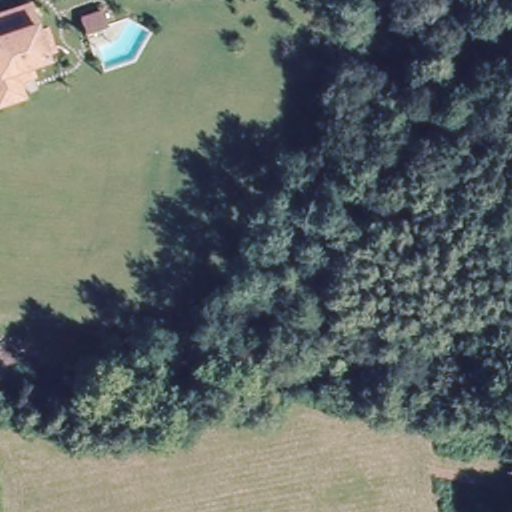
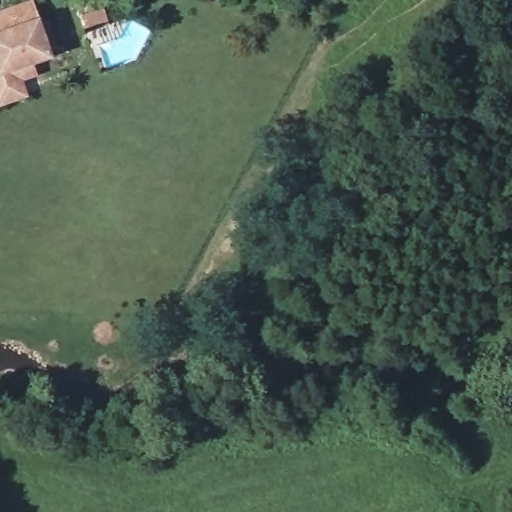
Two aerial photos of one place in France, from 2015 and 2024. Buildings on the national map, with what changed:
unchanged [(0,15),(7,12),(31,5),(48,55),(29,60),(34,73),(21,77),(27,96),(0,104),(0,15)]

